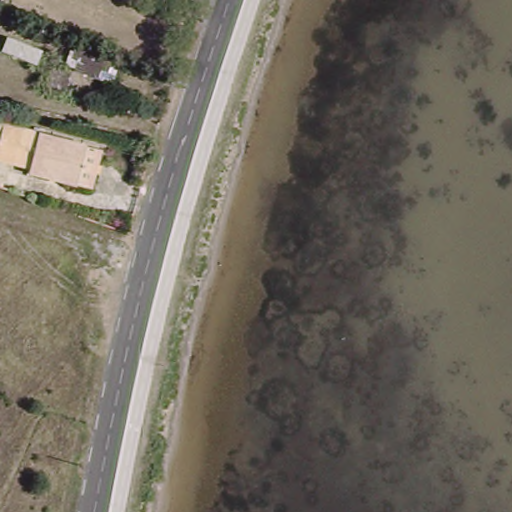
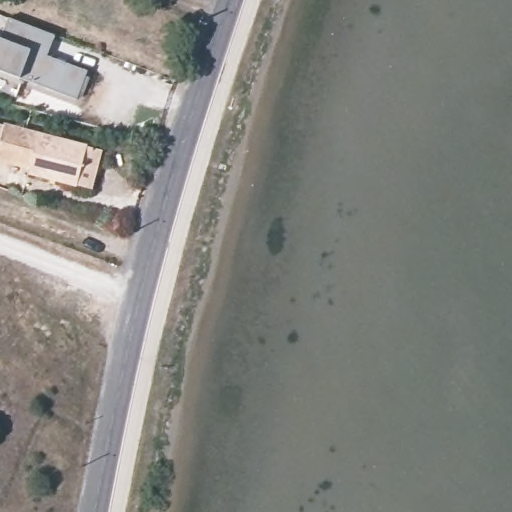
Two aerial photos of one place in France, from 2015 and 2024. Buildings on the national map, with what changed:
new [(8,16),(55,34),(48,54),(88,69),(77,99),(20,78),(0,71),(0,36),(2,37),(8,16)]
new [(28,163),(0,157),(0,125),(4,126),(5,121),(36,129),(28,163)]
unchanged [(92,183),(46,172),(46,168),(28,163),(36,129),(101,145),(92,183)]

